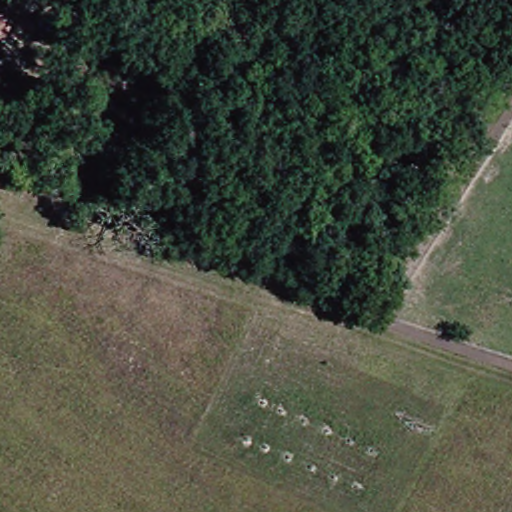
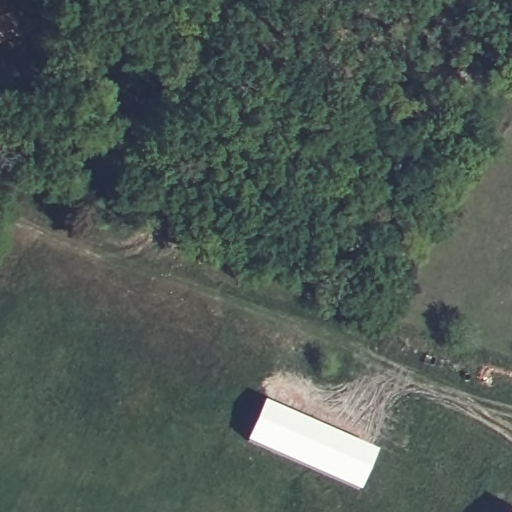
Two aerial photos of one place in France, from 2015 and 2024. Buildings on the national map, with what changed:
unchanged [(3,17),(13,36),(0,41),(0,18),(3,17)]
new [(379,449),(362,489),(250,439),(268,400),(379,449)]

